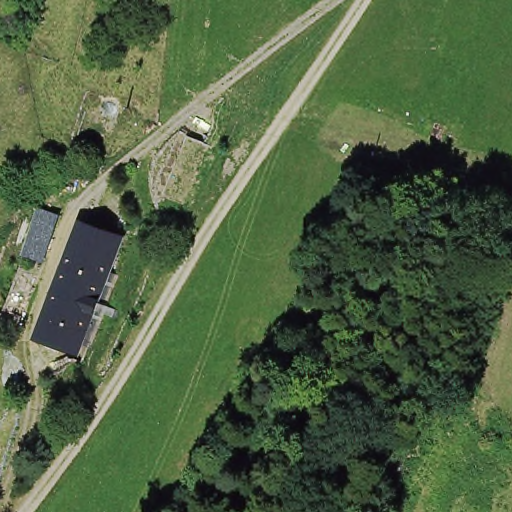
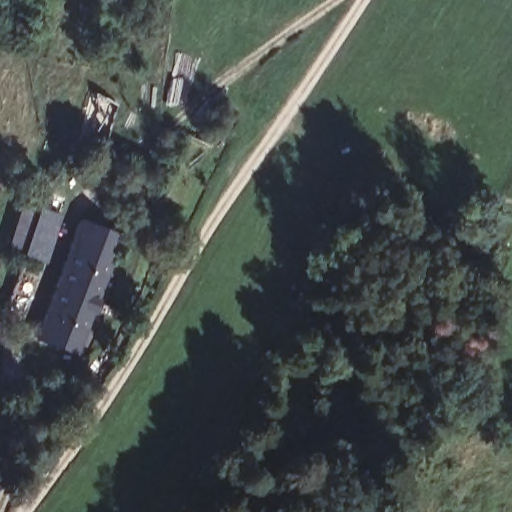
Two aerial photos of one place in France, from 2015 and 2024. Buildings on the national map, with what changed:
unchanged [(80,217),(123,234),(95,307),(54,290),(80,217)]
unchanged [(42,264),(21,259),(35,220),(52,226),(42,264)]
unchanged [(80,347),(38,334),(54,290),(95,307),(80,347)]

